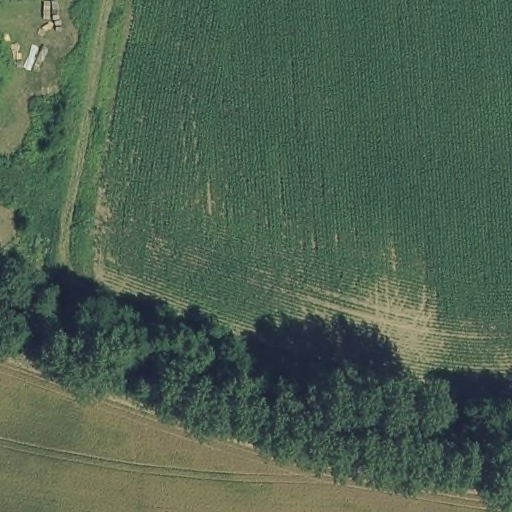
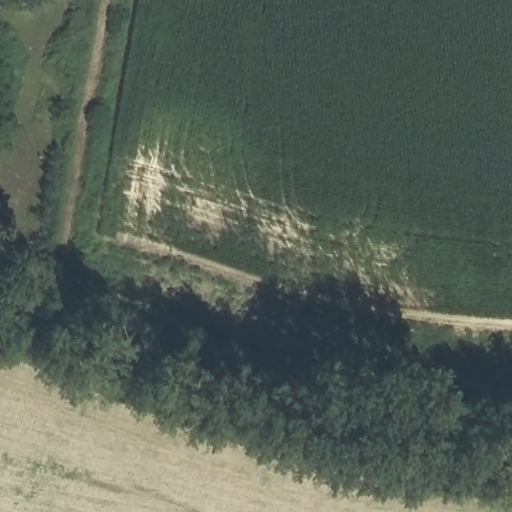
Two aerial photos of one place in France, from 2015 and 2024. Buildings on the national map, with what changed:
[]

